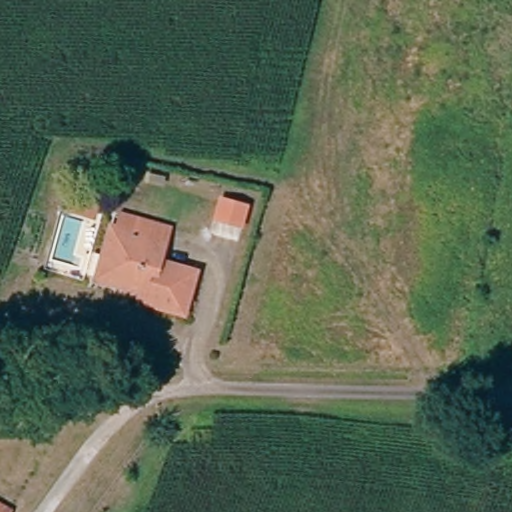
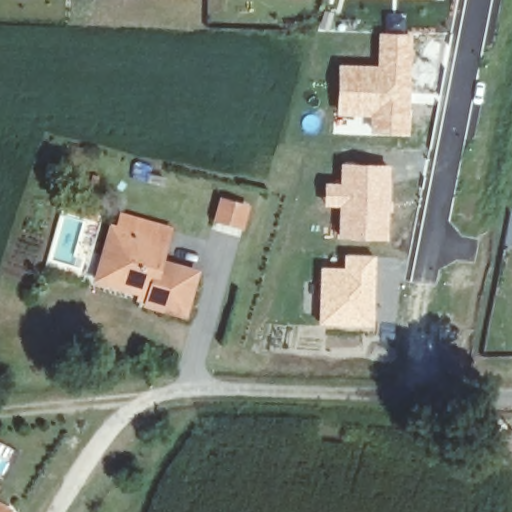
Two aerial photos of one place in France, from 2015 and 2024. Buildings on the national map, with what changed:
new [(377,65),(377,32),(412,34),(408,134),(370,132),(370,117),(336,115),(337,66),(377,65)]
new [(331,184),(341,184),(341,165),(390,167),(389,189),(378,188),(377,207),(388,207),(387,240),(338,239),(340,196),(331,184)]
unchanged [(119,229),(123,214),(170,227),(166,242),(161,261),(198,272),(186,314),(148,303),(149,300),(140,297),(142,292),(107,281),(97,278),(105,256),(112,227),(119,229)]
new [(343,267),(343,255),(376,256),(373,326),(318,325),(321,267),(343,267)]

